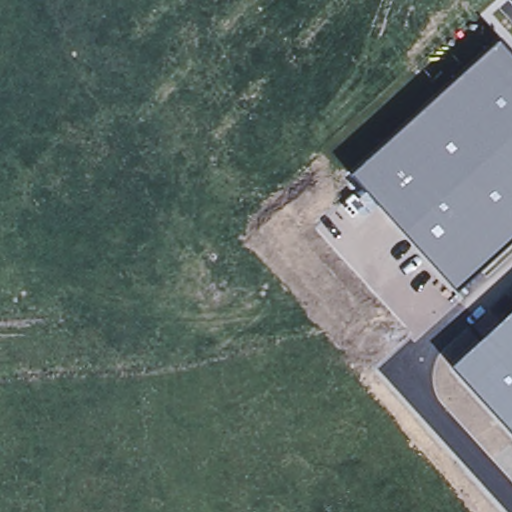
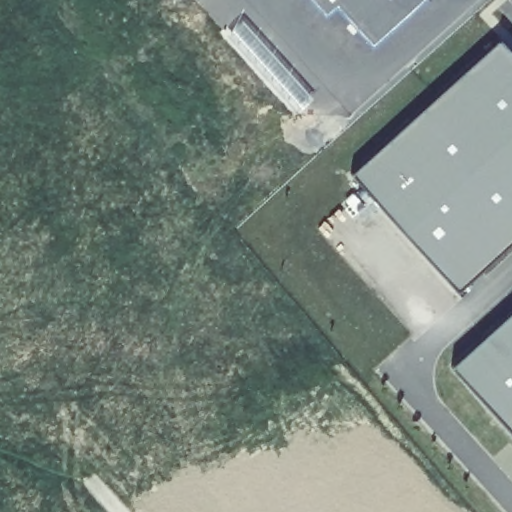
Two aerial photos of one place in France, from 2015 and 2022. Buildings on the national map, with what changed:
new [(373,48),(337,8),(327,17),(311,0),(426,0),(373,48)]
new [(243,21),(314,99),(298,114),(227,35),(243,21)]
unchanged [(459,290),(354,174),(500,40),(512,54),(512,240),(459,290)]
unchanged [(512,313),(512,435),(452,367),(512,313)]

